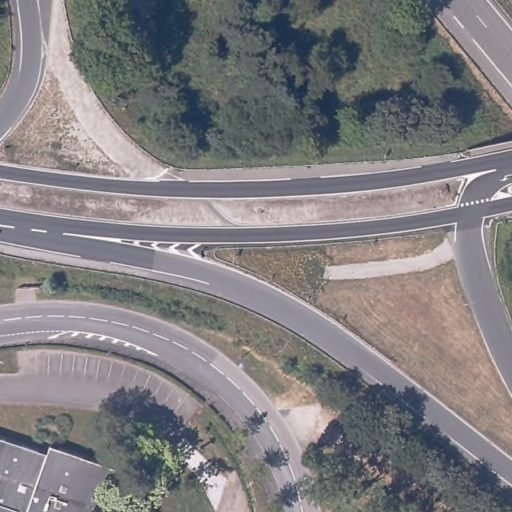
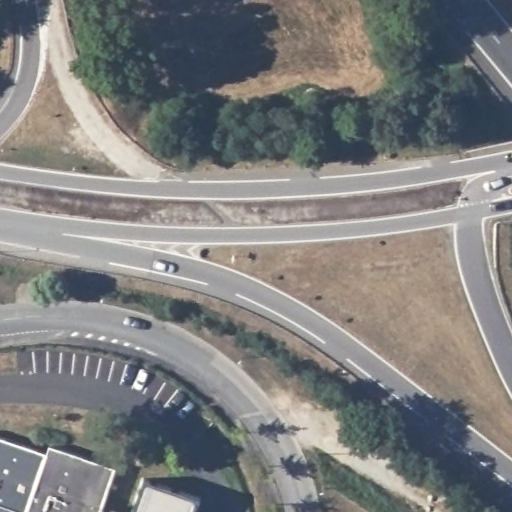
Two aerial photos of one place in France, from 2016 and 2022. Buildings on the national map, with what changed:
unchanged [(43,445),(109,465),(95,512),(13,512),(0,508),(0,438),(40,451),(43,445)]
new [(109,465),(116,467),(100,507),(117,512),(95,512),(109,465)]
new [(146,481),(199,498),(194,512),(134,512),(146,481)]

